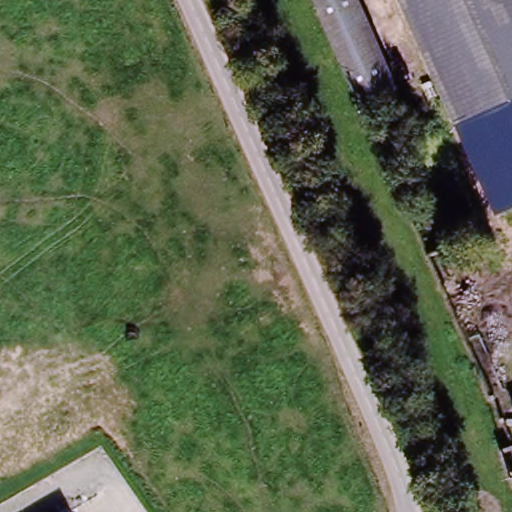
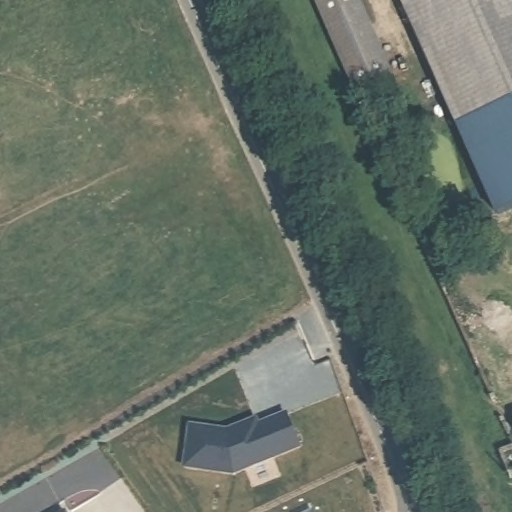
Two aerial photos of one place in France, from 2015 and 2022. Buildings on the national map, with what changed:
unchanged [(320,0),(362,0),(398,85),(362,102),(317,1),(320,0)]
unchanged [(403,0),(512,0),(512,104),(457,128),(403,0)]
unchanged [(457,128),(512,104),(512,210),(497,218),(457,128)]
new [(189,425),(229,431),(258,419),(261,424),(287,413),(302,448),(235,476),(183,470),(189,425)]
unchanged [(512,447),(512,460),(508,449),(512,447)]

